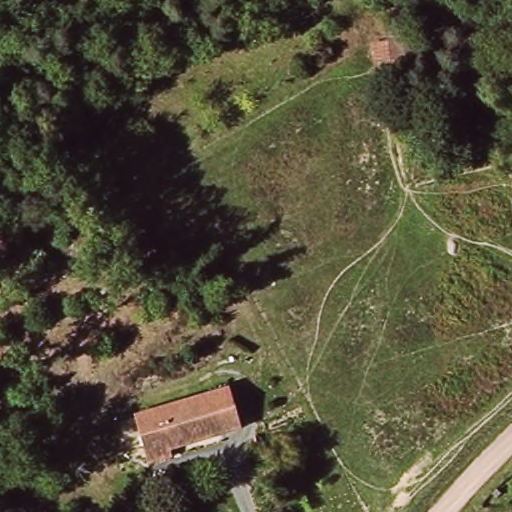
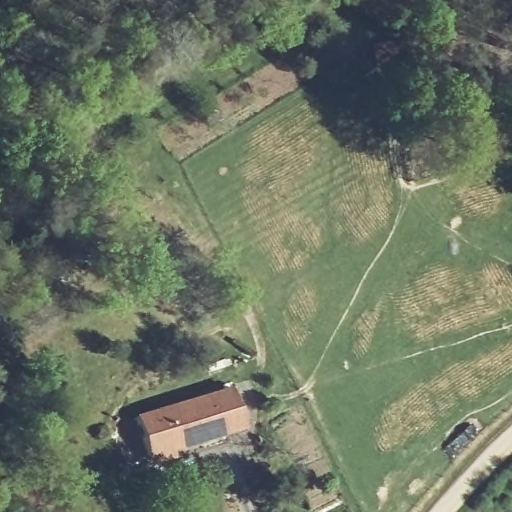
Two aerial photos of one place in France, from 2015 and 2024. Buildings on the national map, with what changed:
unchanged [(245,431),(149,455),(140,414),(236,390),(245,431)]

